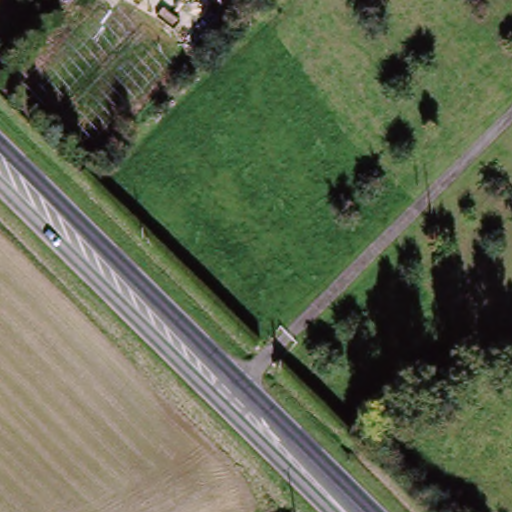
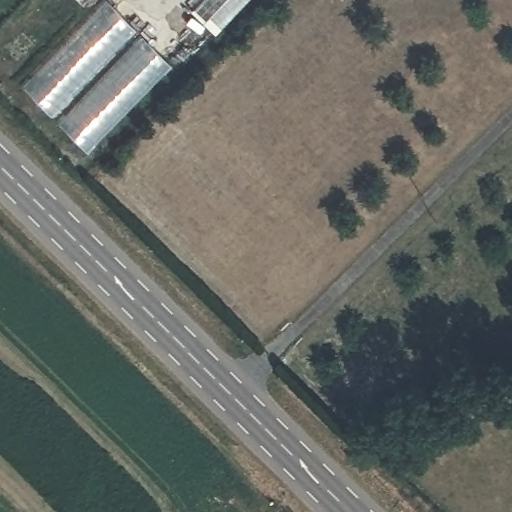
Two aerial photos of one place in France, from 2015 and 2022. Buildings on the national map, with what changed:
new [(171,67),(86,152),(22,86),(105,0),(106,0),(171,67)]

